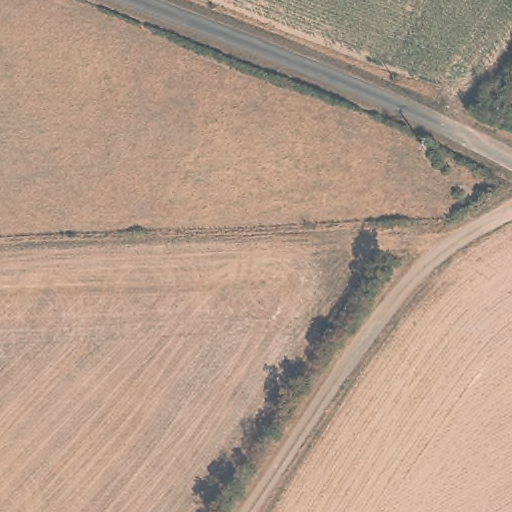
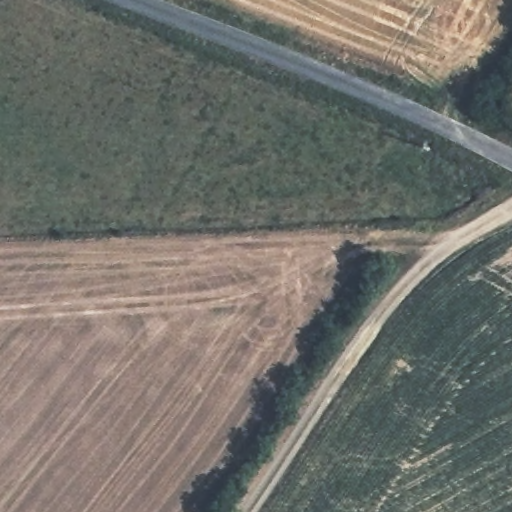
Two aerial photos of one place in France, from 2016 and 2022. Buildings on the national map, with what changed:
unchanged [(418,138),(411,135),(416,125),(422,128),(418,138)]

